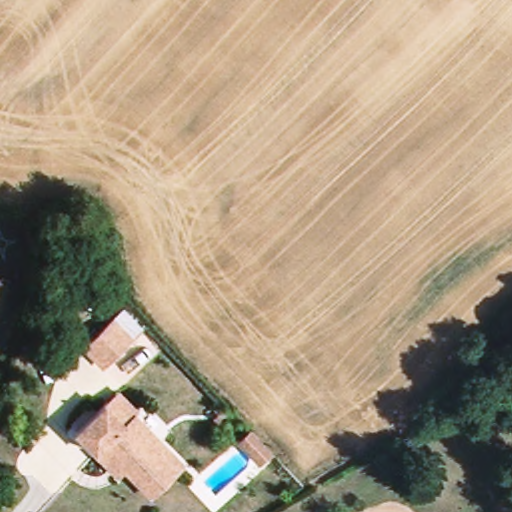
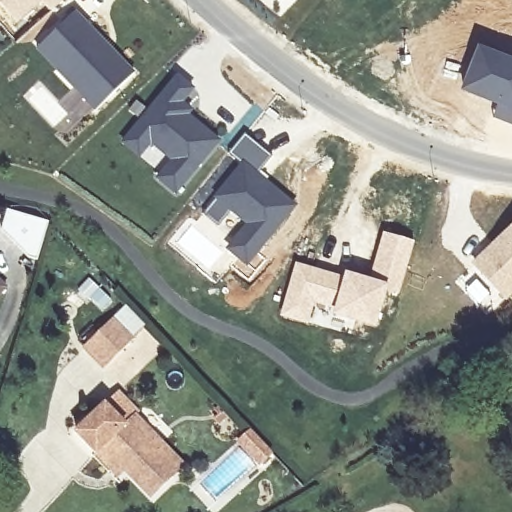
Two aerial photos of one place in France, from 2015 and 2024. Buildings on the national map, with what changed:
new [(37,0),(14,19),(0,3),(0,0),(37,0)]
new [(47,0),(53,0),(49,3),(47,0)]
new [(135,72),(98,108),(59,68),(38,46),(51,34),(76,10),(135,72)]
new [(512,59),(512,125),(493,117),(497,106),(460,91),(478,45),(512,59)]
new [(176,197),(156,180),(169,162),(150,144),(138,158),(119,143),(176,74),(193,88),(183,101),(193,111),(190,115),(219,141),(176,197)]
new [(269,158),(253,176),(289,208),(243,260),(228,249),(248,223),(216,197),(257,148),(269,158)]
new [(512,295),(507,300),(472,262),(512,224),(512,295)]
new [(333,311),(343,275),(344,270),(368,278),(383,231),(416,241),(398,297),(388,294),(378,328),(331,315),(333,311)]
new [(295,262),(343,275),(333,311),(316,305),(309,324),(279,315),(295,262)]
unchanged [(10,296),(0,305),(0,284),(10,296)]
unchanged [(156,348),(124,373),(106,351),(138,325),(156,348)]
unchanged [(98,449),(78,424),(110,399),(124,389),(141,413),(138,416),(181,472),(146,497),(124,468),(116,474),(98,449)]

